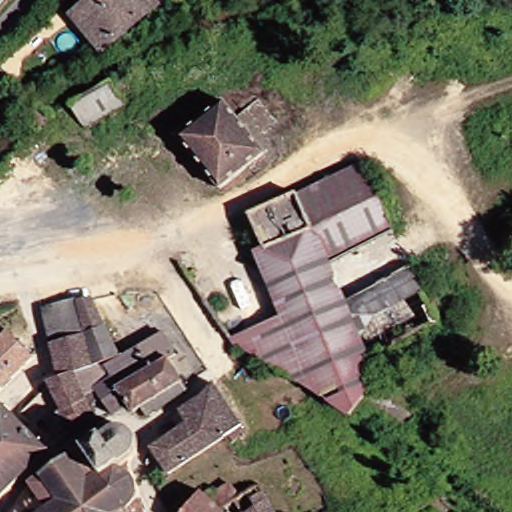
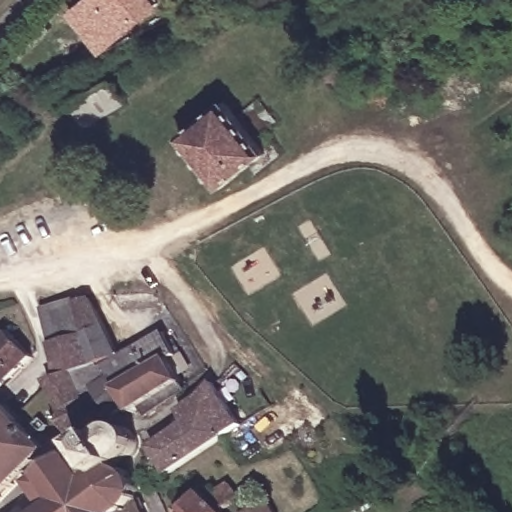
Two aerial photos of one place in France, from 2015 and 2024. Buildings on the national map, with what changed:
unchanged [(76,16),(95,0),(145,0),(152,8),(104,49),(76,16)]
unchanged [(110,89),(122,82),(129,97),(118,104),(121,110),(78,132),(65,110),(108,85),(110,89)]
unchanged [(266,155),(221,194),(177,145),(223,105),(266,155)]
demolished [(321,266),(350,335),(325,349),(302,362),(292,382),(273,368),(244,349),(233,343),(229,337),(280,318),(255,251),(259,250),(246,216),(356,166),(388,235),(321,266)]
unchanged [(59,418),(68,412),(53,390),(49,385),(65,380),(56,346),(88,341),(76,310),(91,308),(126,362),(148,348),(170,335),(191,370),(183,375),(192,389),(150,415),(146,408),(140,412),(136,415),(131,406),(116,417),(96,391),(86,396),(88,400),(97,422),(73,438),(59,418)]
unchanged [(76,310),(88,341),(56,346),(52,337),(47,315),(76,310)]
unchanged [(6,333),(28,353),(27,362),(0,389),(0,340),(6,333)]
demolished [(367,376),(343,416),(292,382),(302,362),(325,349),(350,335),(358,355),(367,376)]
unchanged [(230,414),(240,428),(221,440),(169,475),(151,450),(186,421),(178,410),(196,400),(210,387),(230,414)]
unchanged [(0,503),(0,417),(8,410),(22,423),(52,452),(0,503)]
unchanged [(53,511),(34,487),(120,429),(130,430),(138,433),(142,438),(142,447),(138,455),(119,468),(122,471),(129,471),(138,475),(142,482),(144,491),(143,500),(148,512),(52,512),(53,511)]
unchanged [(230,507),(251,494),(266,512),(233,512),(230,507)]
unchanged [(192,495),(213,512),(179,512),(192,495)]
demolished [(466,512),(454,512),(453,510),(462,500),(471,508),(466,512)]

